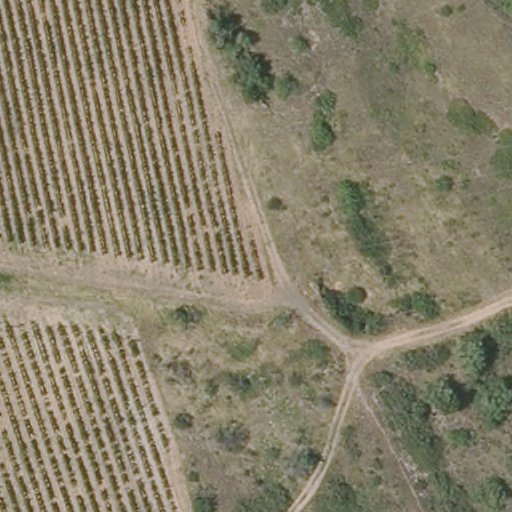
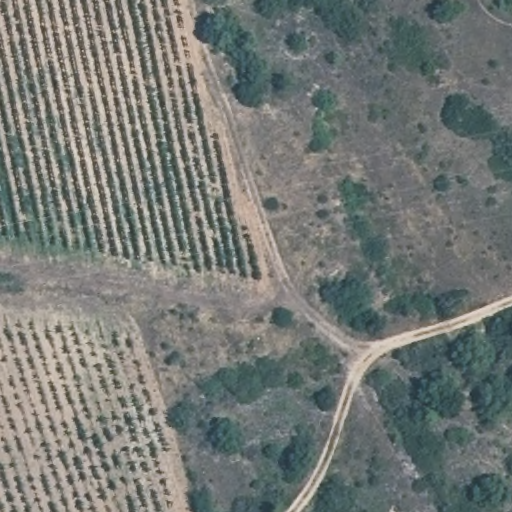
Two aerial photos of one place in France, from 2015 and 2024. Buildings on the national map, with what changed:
[]

